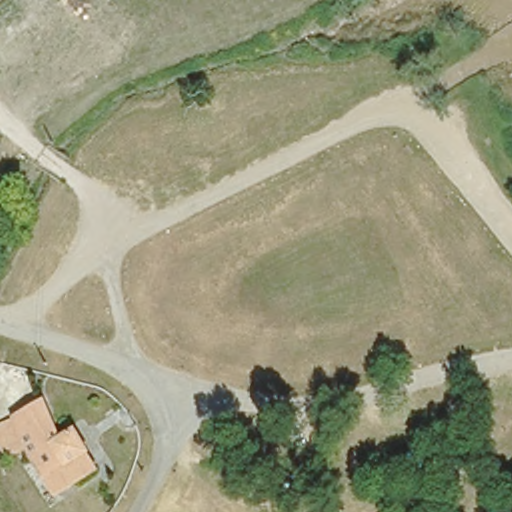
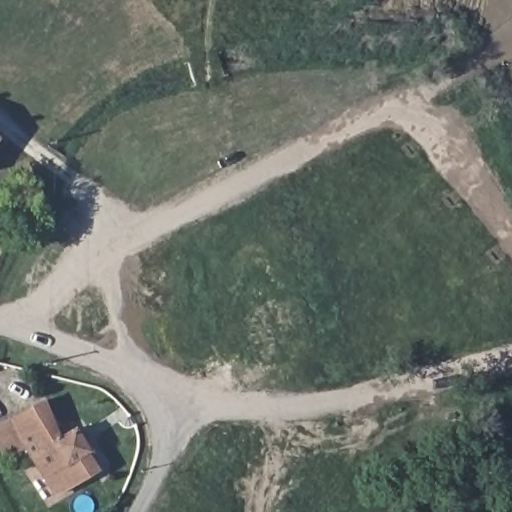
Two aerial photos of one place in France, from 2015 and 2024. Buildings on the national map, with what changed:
unchanged [(0,146),(0,142),(2,143),(0,146)]
unchanged [(28,461),(7,414),(42,397),(52,431),(68,424),(99,469),(58,499),(28,461)]

